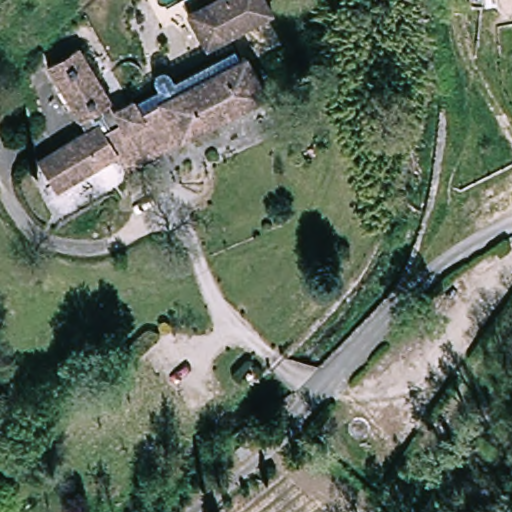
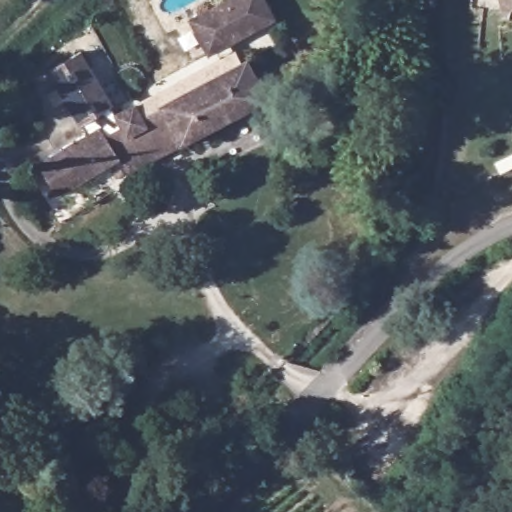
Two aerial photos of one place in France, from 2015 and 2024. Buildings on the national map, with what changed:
unchanged [(192,16),(224,0),(269,0),(278,18),(235,39),(217,48),(211,51),(192,16)]
unchanged [(486,0),(512,0),(512,4),(487,8),(486,0)]
unchanged [(140,102),(162,90),(158,84),(157,80),(158,77),(160,74),(162,72),(166,71),(170,72),(172,73),(175,76),(178,82),(223,58),(217,48),(235,39),(246,61),(167,100),(146,113),(140,102)]
unchanged [(112,95),(115,101),(114,102),(118,110),(132,103),(135,101),(138,99),(140,102),(146,113),(167,100),(246,61),(250,59),(271,98),(132,168),(130,169),(122,154),(58,189),(40,157),(90,128),(51,61),(83,44),(112,95)]

